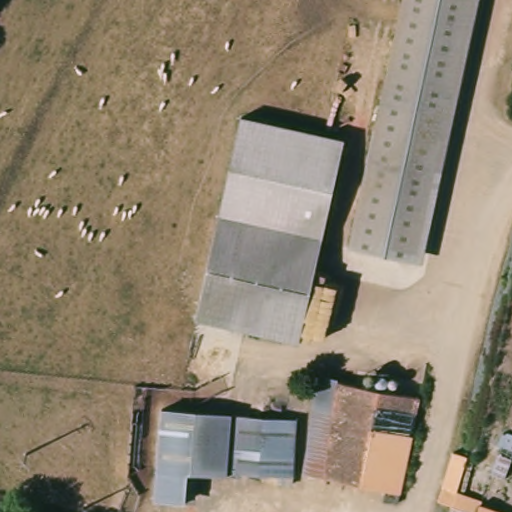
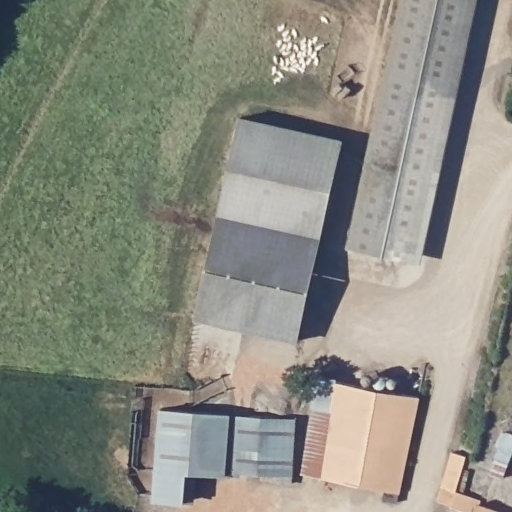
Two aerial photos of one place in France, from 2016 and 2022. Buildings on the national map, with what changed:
unchanged [(481,0),(424,260),(352,243),(404,0),(481,0)]
unchanged [(222,209),(243,113),(347,138),(328,232),(222,209)]
unchanged [(222,209),(328,232),(301,338),(196,313),(222,209)]
unchanged [(305,473),(319,375),(336,378),(321,475),(305,473)]
unchanged [(336,378),(415,395),(396,497),(321,475),(336,378)]
unchanged [(297,421),(293,475),(242,472),(236,478),(191,479),(189,508),(175,507),(161,507),(166,417),(174,417),(186,418),(297,421)]
unchanged [(481,502),(511,512),(465,512),(426,499),(431,482),(482,496),(481,502)]

